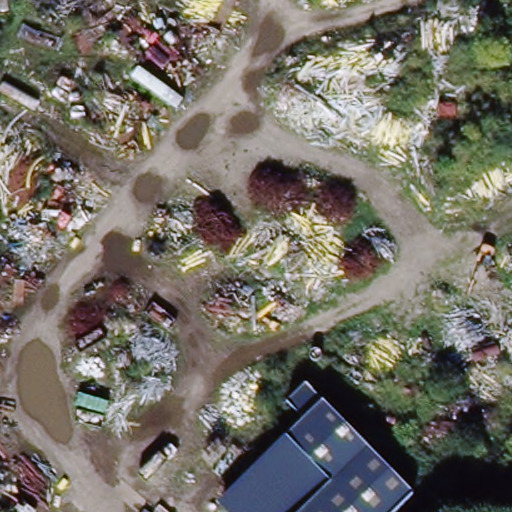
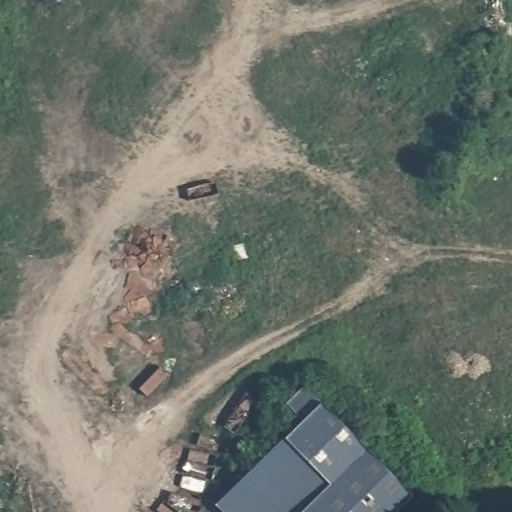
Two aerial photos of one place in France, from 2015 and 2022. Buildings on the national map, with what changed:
unchanged [(285,439),(322,402),(414,494),(396,512),(302,512),(330,484),(285,439)]
unchanged [(302,512),(229,512),(221,503),(285,439),(330,484),(302,512)]

